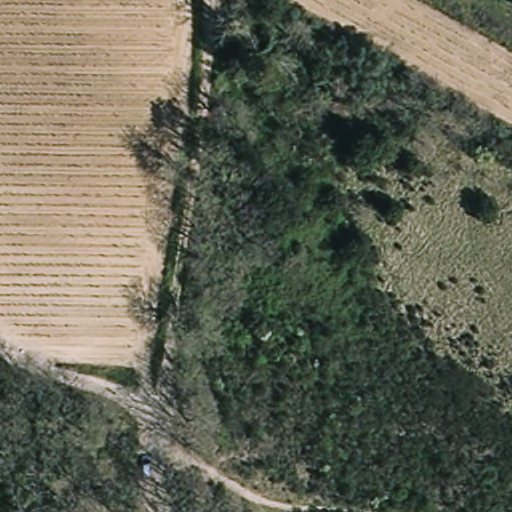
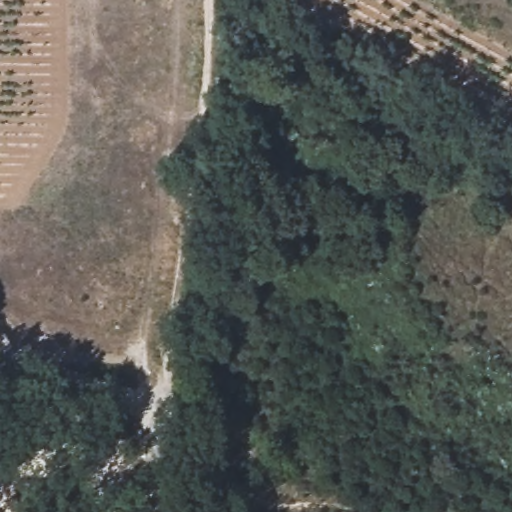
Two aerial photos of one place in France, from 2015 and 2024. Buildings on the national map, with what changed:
[]

